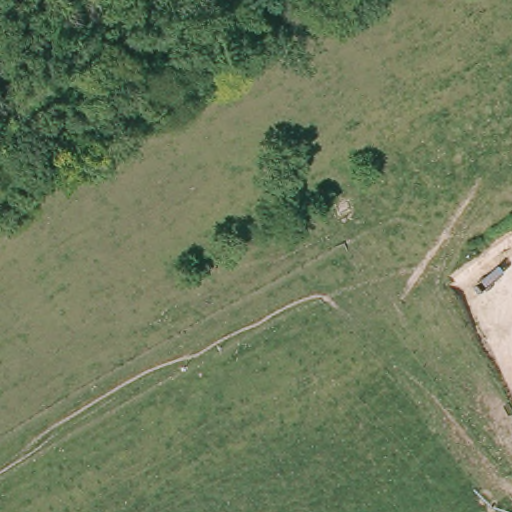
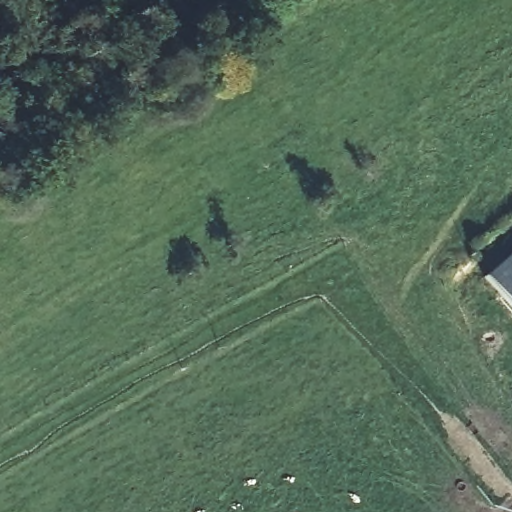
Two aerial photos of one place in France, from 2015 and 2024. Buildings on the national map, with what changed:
new [(512,254),(512,307),(487,277),(512,254)]

